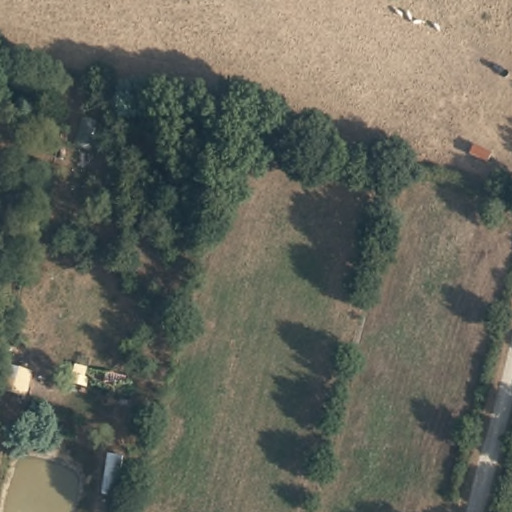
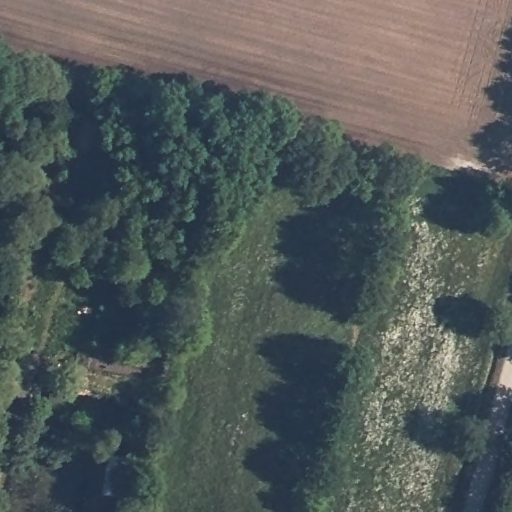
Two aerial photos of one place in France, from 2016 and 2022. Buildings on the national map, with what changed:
[]

